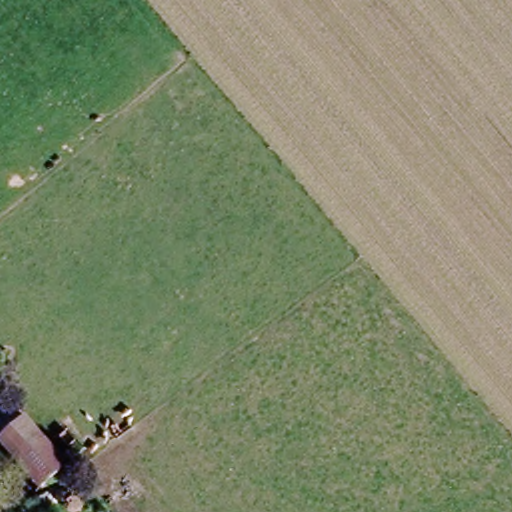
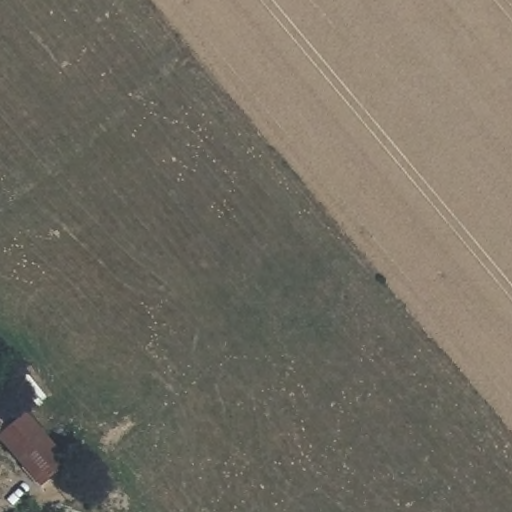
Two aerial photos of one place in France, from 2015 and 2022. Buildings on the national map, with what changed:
unchanged [(22,421),(26,417),(67,465),(39,490),(0,444),(0,414),(9,407),(22,421)]

